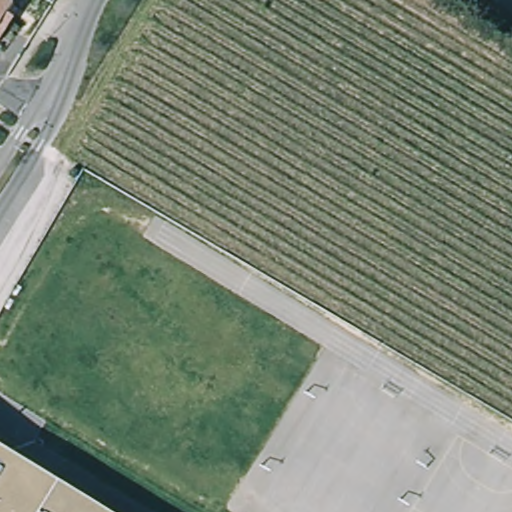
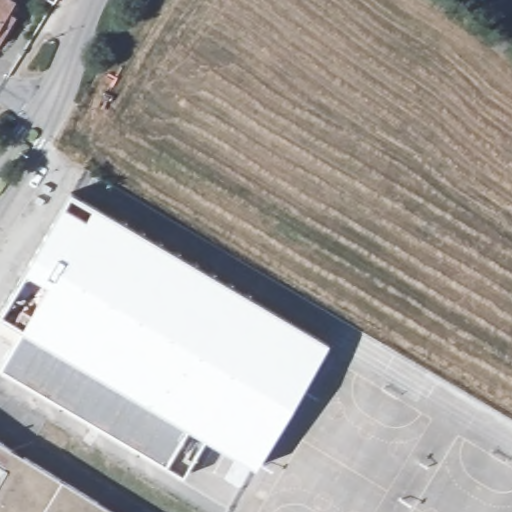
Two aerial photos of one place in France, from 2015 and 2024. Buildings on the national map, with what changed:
unchanged [(15,15),(0,39),(0,0),(17,0),(8,11),(15,15)]
new [(0,366),(21,329),(0,317),(0,309),(70,192),(327,344),(255,468),(206,438),(183,475),(0,368),(0,366)]
unchanged [(0,441),(114,512),(0,512),(0,441)]

